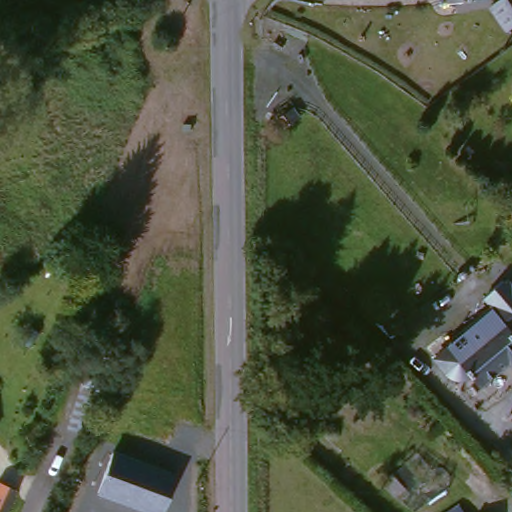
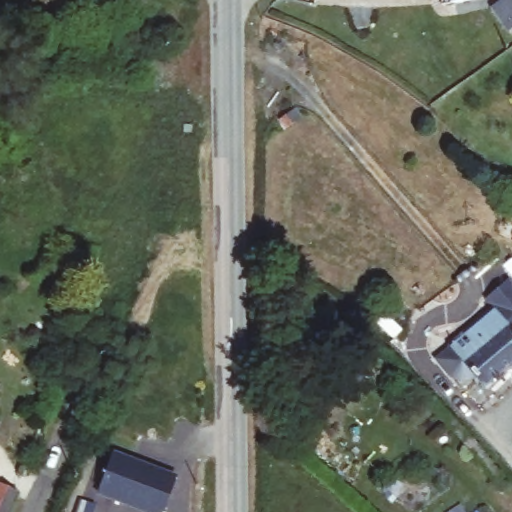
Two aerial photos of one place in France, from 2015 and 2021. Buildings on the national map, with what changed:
unchanged [(488,1),(448,8),(447,0),(488,0),(488,1)]
unchanged [(504,0),(512,0),(512,31),(506,35),(488,11),(504,0)]
unchanged [(489,320),(512,348),(512,382),(508,378),(480,401),(470,389),(467,392),(463,393),(451,390),(446,386),(433,374),(446,363),(443,359),(489,320)]
unchanged [(89,400),(82,423),(67,418),(74,395),(89,400)]
unchanged [(176,474),(162,512),(145,512),(96,492),(114,448),(176,474)]
unchanged [(403,489),(394,497),(381,483),(390,474),(403,489)]
unchanged [(3,512),(0,512),(0,484),(12,490),(3,512)]
unchanged [(459,512),(458,512),(458,511),(459,512)]

